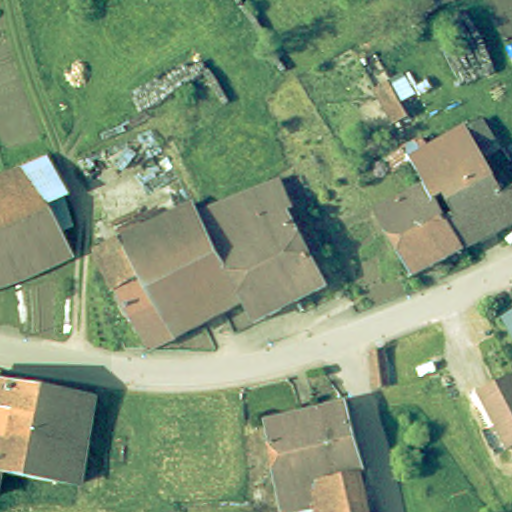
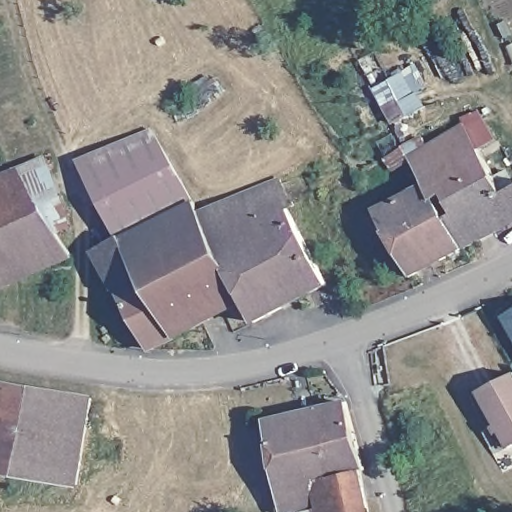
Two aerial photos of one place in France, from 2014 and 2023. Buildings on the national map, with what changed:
unchanged [(421,170),(411,156),(464,125),(500,190),(512,183),(512,221),(464,245),(421,170)]
new [(78,160),(153,128),(194,197),(117,238),(78,160)]
unchanged [(67,253),(0,281),(0,173),(15,167),(36,160),(54,190),(36,201),(51,227),(67,253)]
unchanged [(409,268),(378,208),(388,201),(417,184),(412,176),(421,170),(464,245),(407,275),(404,270),(409,268)]
unchanged [(293,299),(252,321),(242,300),(199,208),(271,179),(279,175),(293,201),(285,205),(325,282),(293,299)]
unchanged [(149,347),(93,251),(194,197),(199,208),(242,300),(149,347)]
unchanged [(512,306),(512,336),(500,313),(512,306)]
unchanged [(395,385),(390,386),(377,387),(372,351),(390,350),(395,385)]
unchanged [(478,399),(477,396),(512,376),(512,449),(508,451),(478,399)]
unchanged [(83,442),(0,426),(0,383),(91,399),(83,442)]
unchanged [(338,392),(341,393),(358,465),(353,466),(311,477),(313,482),(275,492),(261,418),(338,392)]
unchanged [(74,484),(0,472),(0,426),(83,442),(83,450),(82,451),(76,484),(81,485),(81,492),(74,484)]
unchanged [(277,510),(274,492),(275,492),(313,482),(311,477),(353,466),(364,512),(300,512),(298,505),(277,510)]

